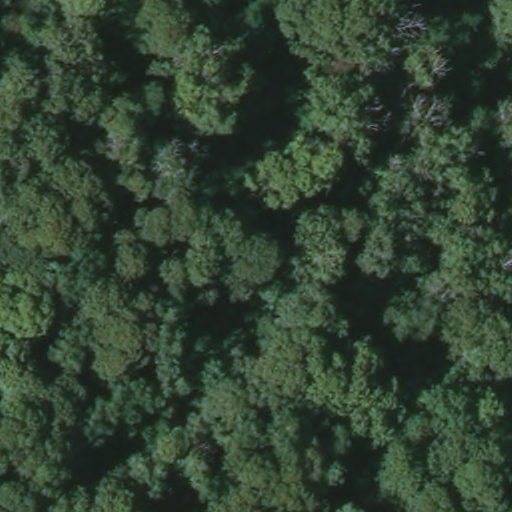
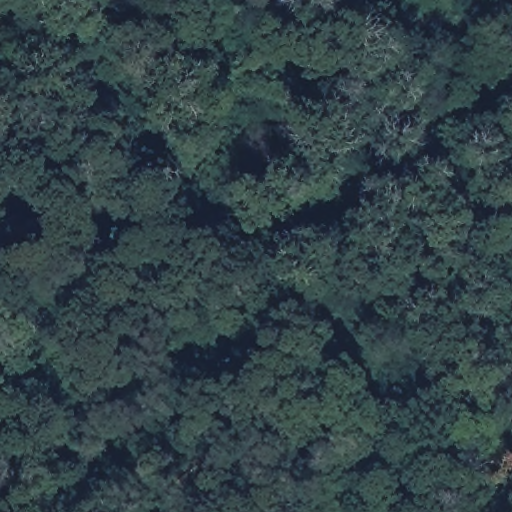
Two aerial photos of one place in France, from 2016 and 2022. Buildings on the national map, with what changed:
[]

